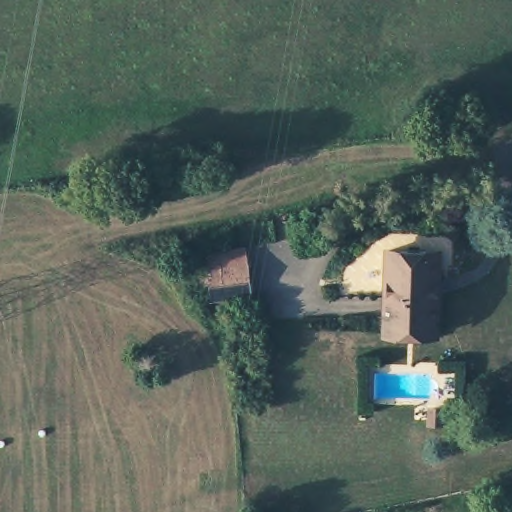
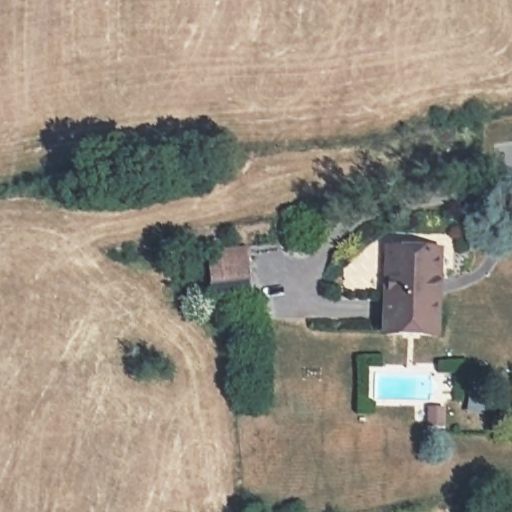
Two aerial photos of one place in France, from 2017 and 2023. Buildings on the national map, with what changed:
unchanged [(383,336),(384,320),(388,250),(441,254),(437,323),(436,338),(383,336)]
unchanged [(250,305),(207,309),(205,291),(182,293),(177,262),(243,251),(250,305)]

